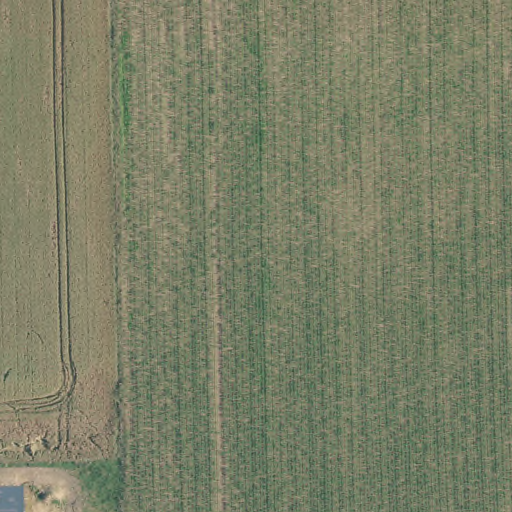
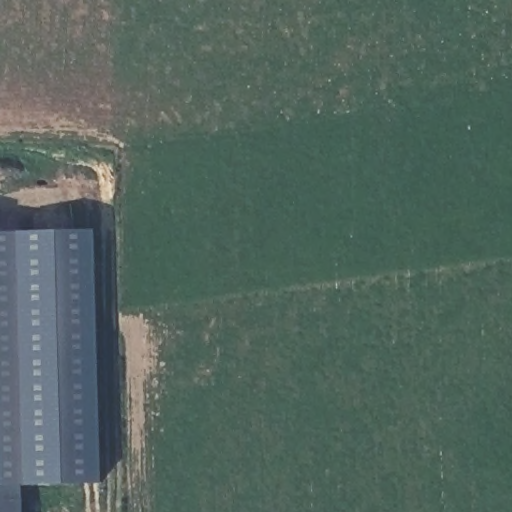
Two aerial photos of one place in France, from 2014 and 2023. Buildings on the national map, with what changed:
new [(0,234),(95,230),(105,482),(21,484),(0,485),(0,234)]
unchanged [(0,485),(21,484),(22,512),(0,512),(0,485)]

